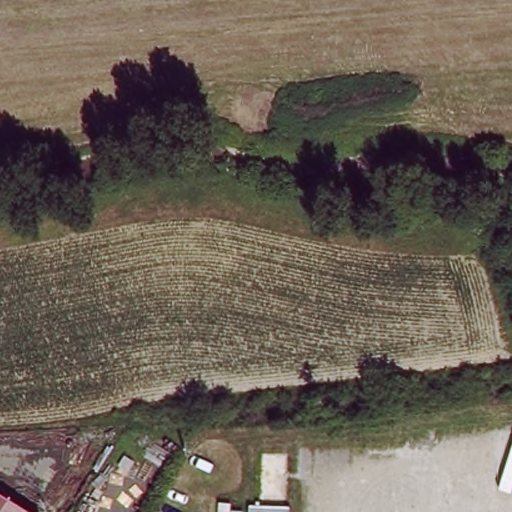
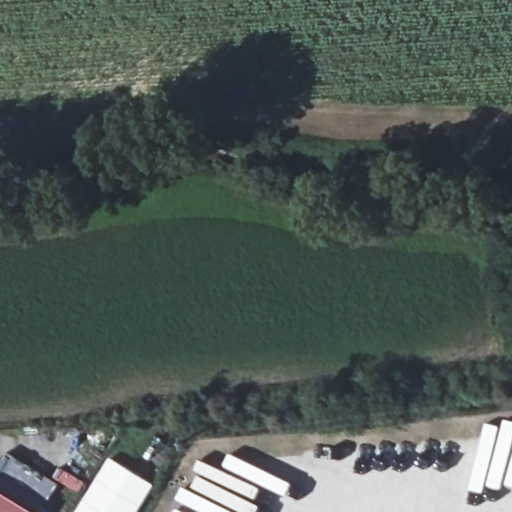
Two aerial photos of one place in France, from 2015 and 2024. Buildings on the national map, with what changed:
new [(155,485),(137,512),(74,512),(109,456),(155,485)]
demolished [(282,489),(281,512),(251,512),(252,459),(271,459),(270,489),(282,489)]
unchanged [(35,512),(0,512),(0,489),(35,512)]

